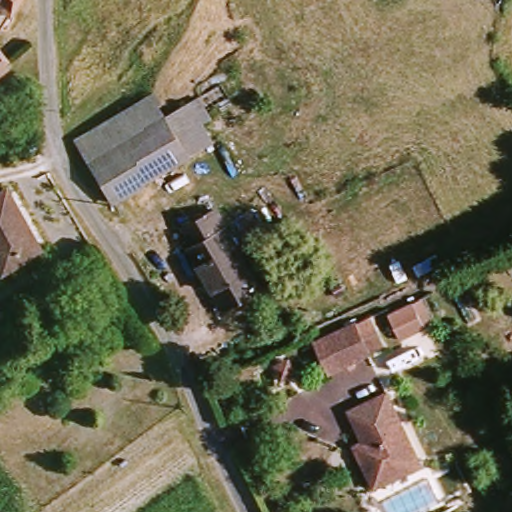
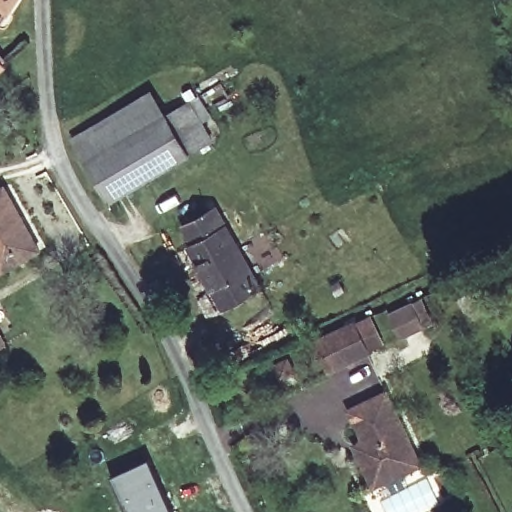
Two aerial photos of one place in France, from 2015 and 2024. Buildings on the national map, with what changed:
unchanged [(0,8),(0,0),(15,0),(8,12),(0,8)]
unchanged [(5,65),(0,69),(0,59),(5,65)]
unchanged [(83,149),(74,125),(153,95),(162,120),(83,149)]
unchanged [(83,149),(162,120),(202,105),(210,125),(212,130),(203,137),(207,152),(157,170),(98,190),(83,149)]
unchanged [(29,258),(0,265),(0,188),(12,187),(14,194),(18,214),(29,258)]
unchanged [(215,305),(191,254),(199,250),(188,227),(214,215),(248,290),(215,305)]
unchanged [(331,370),(317,343),(355,325),(368,352),(331,370)]
unchanged [(2,345),(0,345),(0,341),(2,345)]
unchanged [(303,388),(288,395),(281,380),(294,373),(303,388)]
unchanged [(350,410),(388,392),(421,465),(384,481),(374,486),(355,447),(365,442),(350,410)]
new [(173,512),(128,512),(112,476),(149,459),(173,512)]

